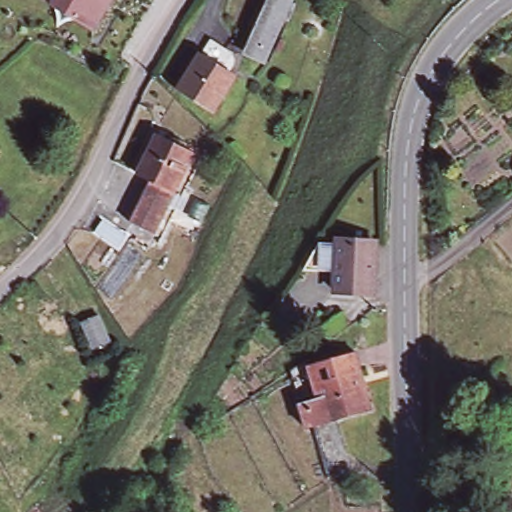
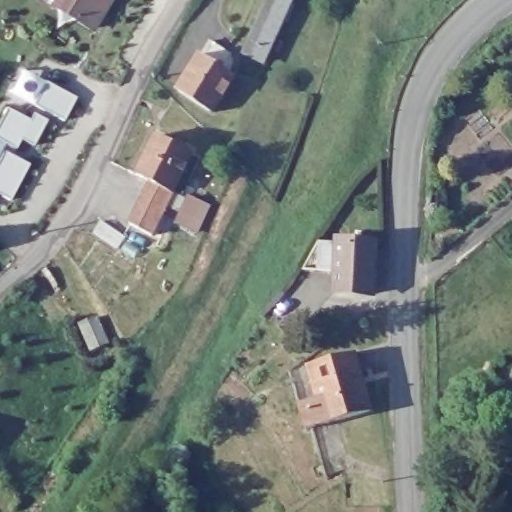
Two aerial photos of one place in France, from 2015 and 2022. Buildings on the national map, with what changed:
unchanged [(94,30),(48,4),(51,0),(111,0),(94,30)]
unchanged [(291,5),(263,67),(243,56),(270,0),(279,0),(291,5)]
unchanged [(212,115),(180,92),(203,57),(213,42),(235,56),(225,71),(236,79),(212,115)]
new [(47,83),(76,102),(65,123),(35,106),(47,83)]
new [(7,111),(32,124),(35,117),(47,123),(35,148),(22,142),(16,151),(0,142),(0,128),(7,111)]
unchanged [(132,223),(145,198),(153,180),(137,172),(156,133),(194,152),(166,208),(153,233),(132,223)]
new [(5,155),(31,167),(12,204),(0,198),(0,164),(5,155)]
unchanged [(101,224),(126,237),(120,249),(95,236),(101,224)]
unchanged [(374,299),(335,297),(336,278),(304,275),(306,272),(318,250),(338,252),(338,248),(377,250),(374,299)]
unchanged [(325,336),(317,325),(338,308),(347,319),(325,336)]
unchanged [(306,408),(321,404),(310,367),(357,354),(373,412),(327,425),(312,429),(306,408)]

